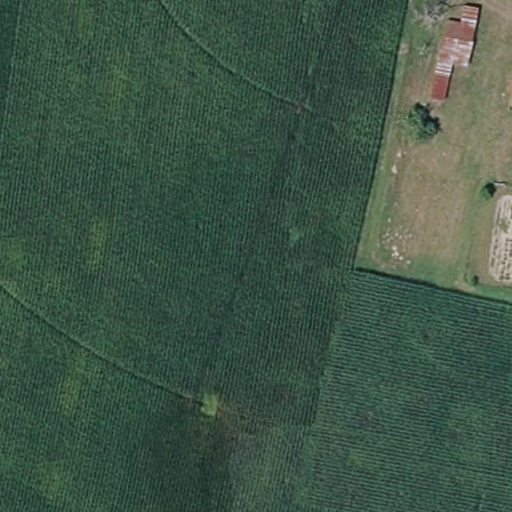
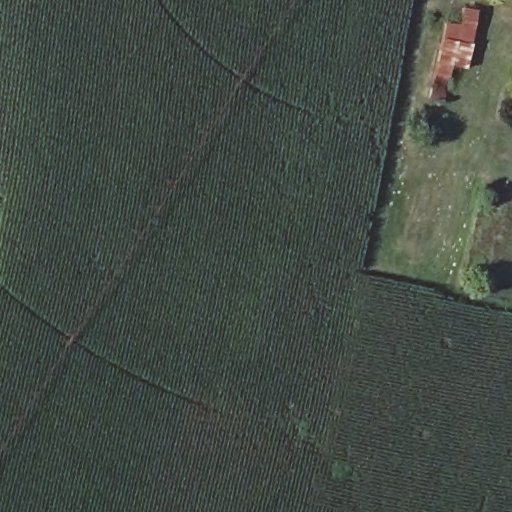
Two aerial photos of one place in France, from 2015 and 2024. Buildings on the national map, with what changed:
unchanged [(445,4),(475,11),(463,70),(452,70),(445,105),(425,104),(445,4)]
unchanged [(512,73),(512,106),(507,106),(512,72),(512,73)]

